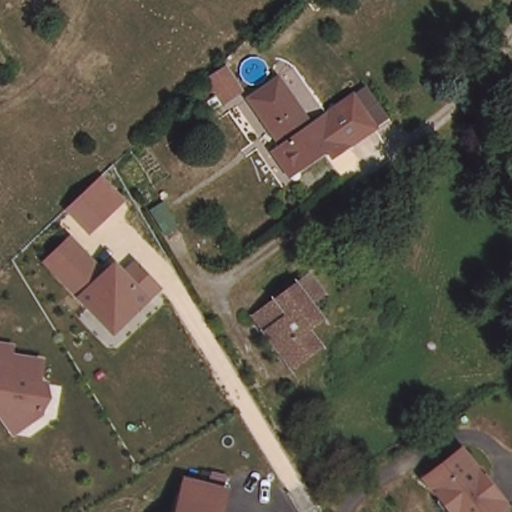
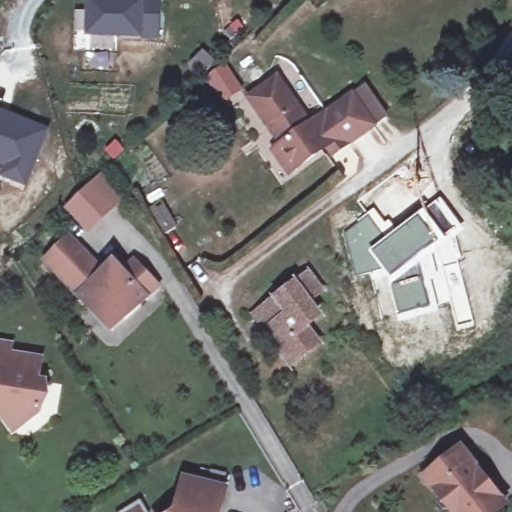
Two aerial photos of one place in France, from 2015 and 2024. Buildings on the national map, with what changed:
new [(87,0),(162,0),(160,40),(82,37),(87,0)]
unchanged [(215,67),(230,90),(213,101),(199,79),(215,67)]
unchanged [(273,151),(281,145),(248,99),(278,77),(311,125),(327,114),(343,137),(297,169),(290,174),(273,151)]
unchanged [(353,92),(355,94),(366,85),(390,119),(332,160),(325,150),(343,137),(327,114),(353,92)]
new [(27,188),(0,178),(0,108),(50,128),(27,188)]
unchanged [(65,211),(101,175),(125,200),(90,235),(65,211)]
new [(440,197),(463,231),(446,242),(390,282),(382,271),(370,251),(396,229),(422,210),(440,197)]
new [(373,206),(396,229),(370,251),(382,271),(354,277),(341,230),(373,206)]
unchanged [(150,299),(111,336),(76,296),(43,261),(71,236),(106,268),(115,261),(122,267),(135,258),(162,289),(150,299)]
unchanged [(309,352),(292,365),(255,316),(309,276),(321,292),(308,302),(320,317),(301,331),(315,348),(309,352)]
unchanged [(13,438),(0,422),(0,337),(15,339),(14,352),(46,358),(42,412),(13,438)]
unchanged [(448,512),(421,478),(462,448),(508,507),(502,512),(448,512)]
unchanged [(170,512),(174,510),(185,473),(230,486),(224,512),(170,512)]

